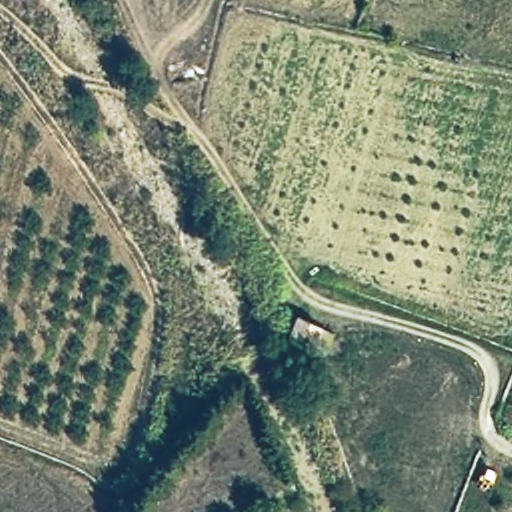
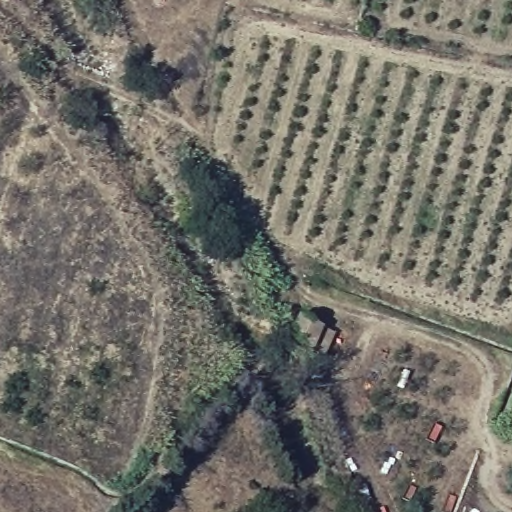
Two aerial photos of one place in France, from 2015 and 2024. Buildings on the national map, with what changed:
unchanged [(334,329),(325,352),(285,337),(300,314),(334,329)]

